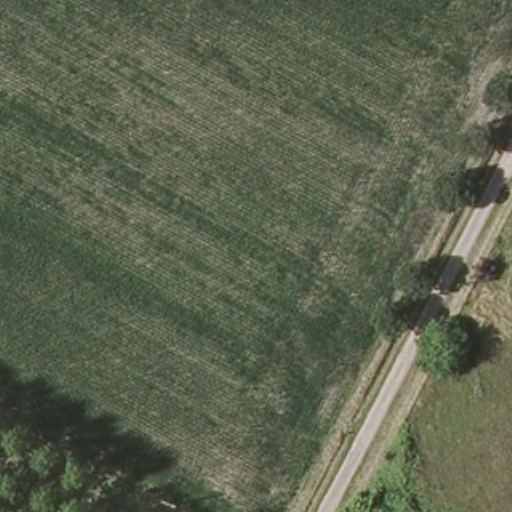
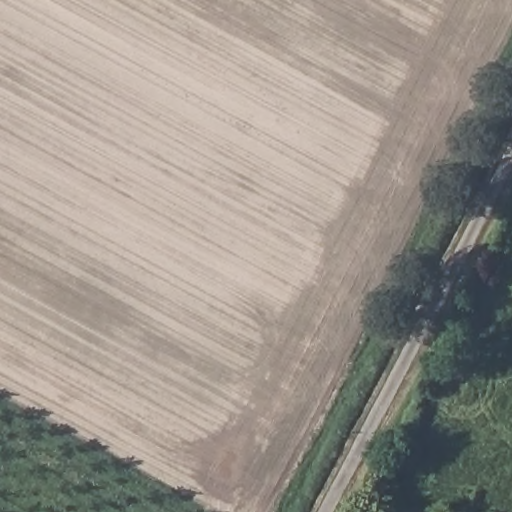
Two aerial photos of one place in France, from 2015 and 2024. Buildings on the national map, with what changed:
[]

